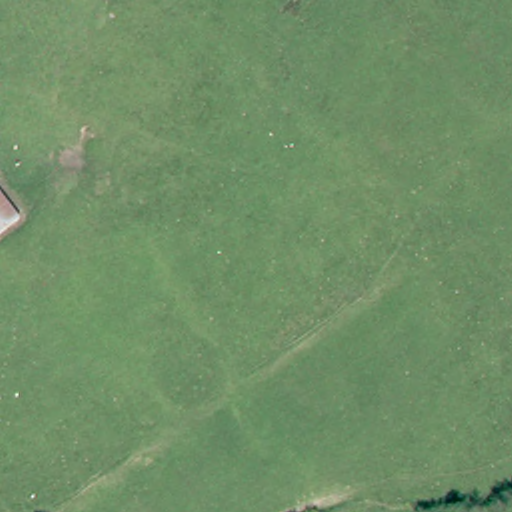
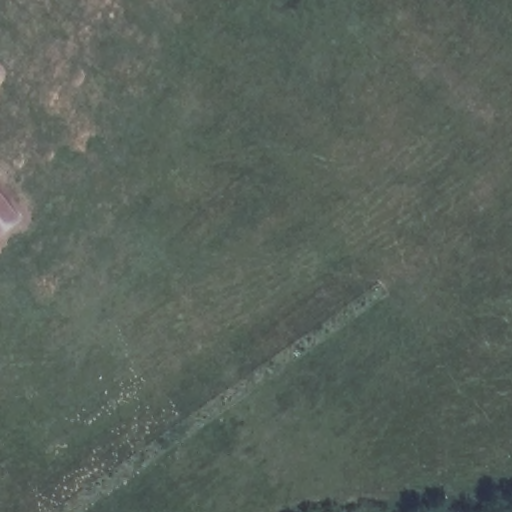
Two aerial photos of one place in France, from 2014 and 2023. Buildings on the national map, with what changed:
unchanged [(25,218),(0,234),(0,182),(1,181),(25,218)]

